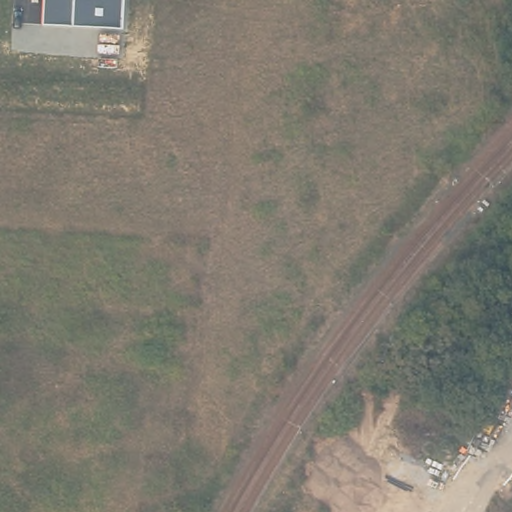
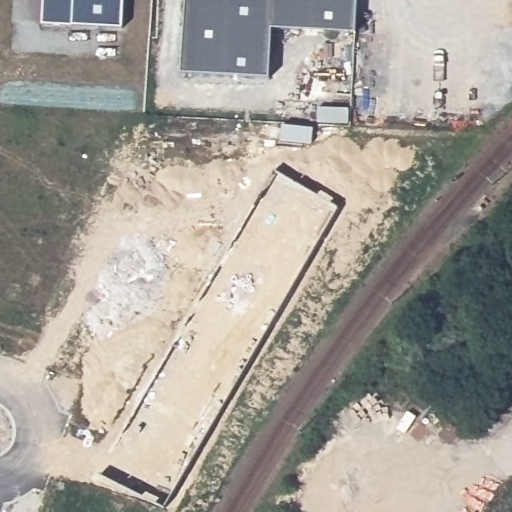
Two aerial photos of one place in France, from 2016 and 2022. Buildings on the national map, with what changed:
unchanged [(74,26),(42,24),(44,0),(124,0),(122,29),(74,26)]
new [(181,72),(186,0),(358,0),(356,33),(273,29),(268,77),(181,72)]

